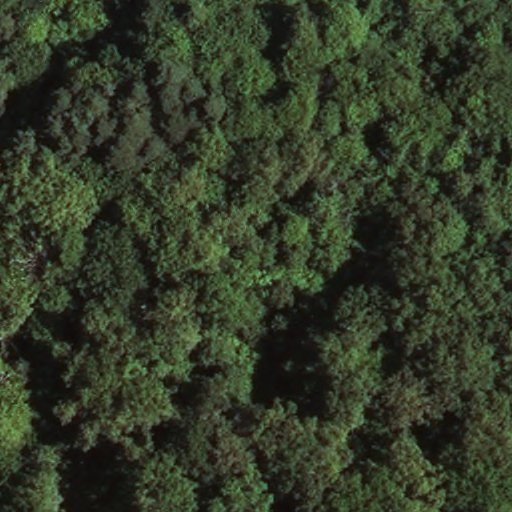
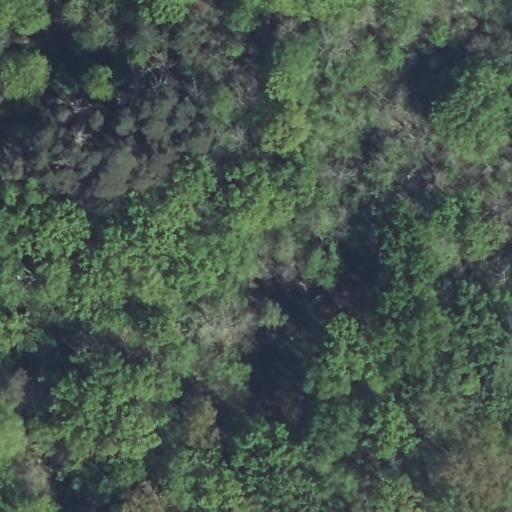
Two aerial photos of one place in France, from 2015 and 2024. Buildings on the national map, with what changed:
[]

